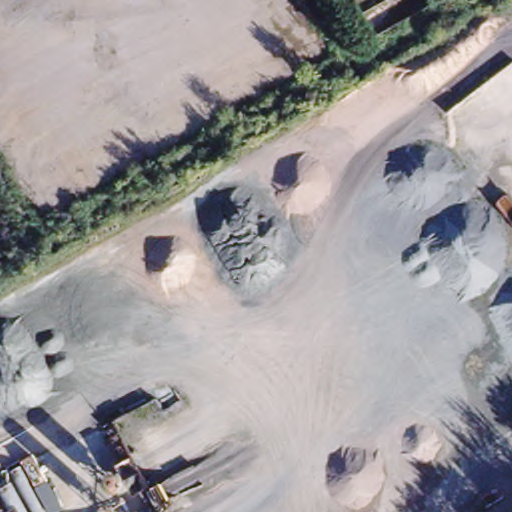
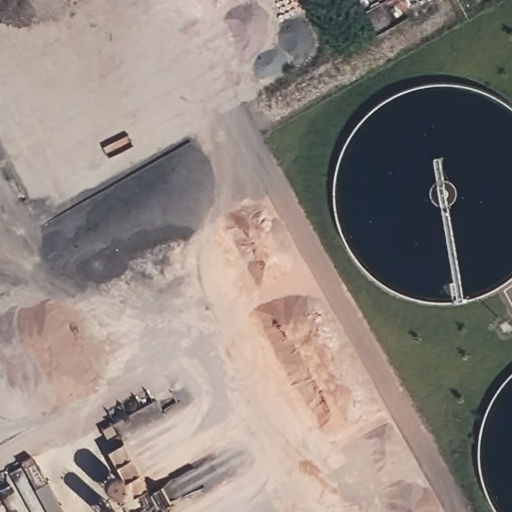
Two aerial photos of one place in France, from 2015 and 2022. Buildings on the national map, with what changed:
unchanged [(47,481),(62,510),(58,512),(45,512),(20,464),(20,462),(32,456),(45,482),(47,481)]

